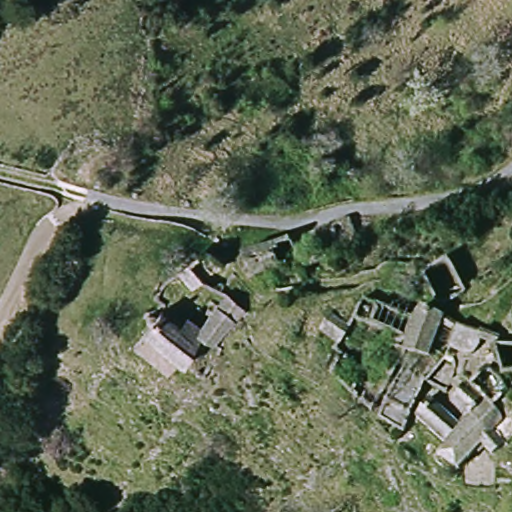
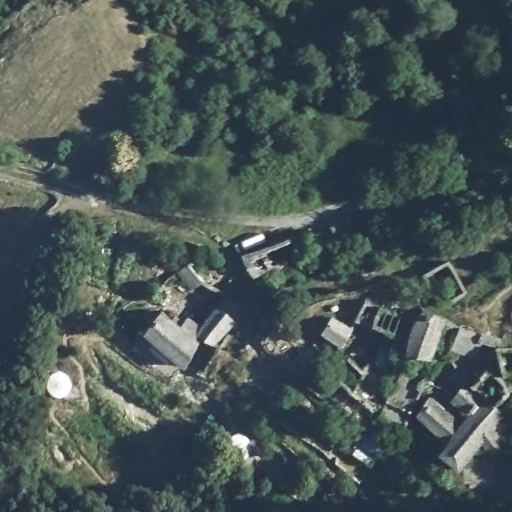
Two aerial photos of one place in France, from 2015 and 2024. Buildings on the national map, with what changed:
unchanged [(228,265),(239,260),(297,239),(303,257),(236,286),(228,265)]
unchanged [(206,254),(222,267),(208,285),(193,270),(206,254)]
unchanged [(141,336),(156,314),(175,325),(182,317),(195,322),(210,303),(238,320),(221,348),(204,337),(184,365),(141,336)]
unchanged [(407,349),(412,341),(421,320),(425,314),(440,320),(425,355),(407,349)]
unchanged [(331,315),(353,328),(341,350),(320,337),(331,315)]
unchanged [(484,332),(476,355),(454,350),(461,325),(484,332)]
unchanged [(452,425),(460,414),(447,402),(463,385),(489,406),(505,419),(494,431),(506,442),(495,456),(480,444),(458,469),(442,456),(448,444),(418,421),(414,417),(425,402),(452,425)]

